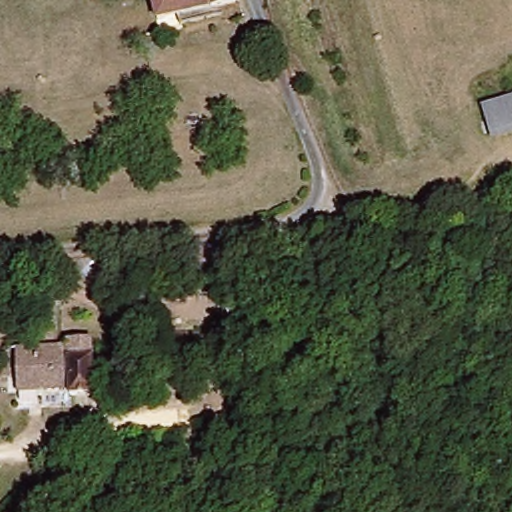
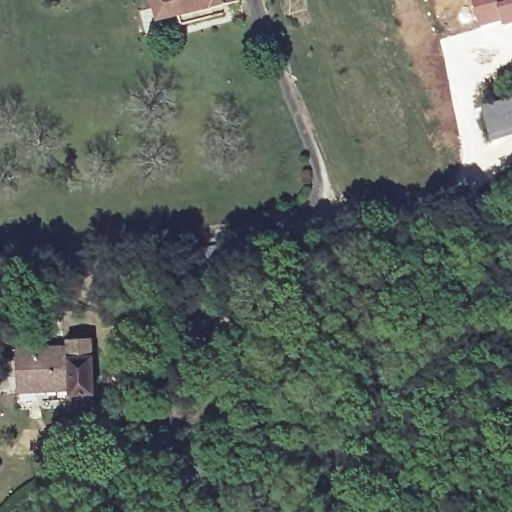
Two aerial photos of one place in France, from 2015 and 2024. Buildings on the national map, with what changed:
unchanged [(149,1),(154,0),(233,0),(185,15),(156,25),(151,6),(149,1)]
new [(498,1),(502,0),(512,0),(512,22),(502,24),(501,20),(480,25),(472,0),(498,0),(498,1)]
unchanged [(496,134),(487,106),(512,97),(512,129),(496,134)]
unchanged [(200,310),(202,324),(192,326),(192,335),(210,334),(211,353),(189,354),(188,371),(161,372),(159,311),(200,310)]
unchanged [(10,380),(10,359),(62,356),(62,340),(86,342),(85,391),(32,394),(10,393),(10,380)]

